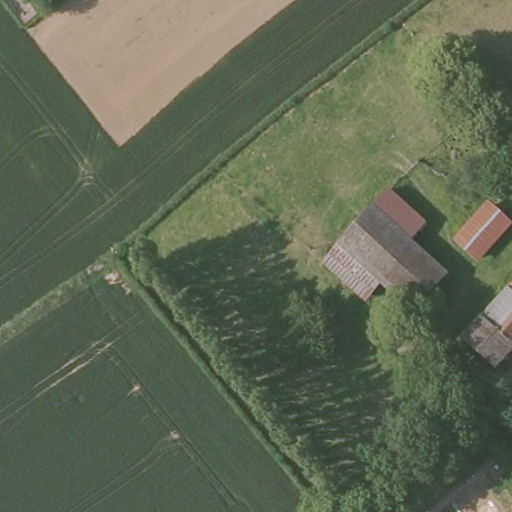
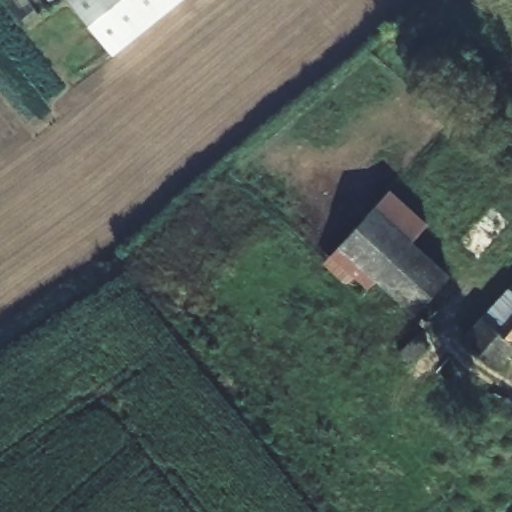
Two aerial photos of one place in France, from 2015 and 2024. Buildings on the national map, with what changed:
new [(68,0),(182,0),(113,56),(68,0)]
unchanged [(347,251),(399,198),(434,231),(420,249),(454,282),(421,319),(347,251)]
unchanged [(512,228),(512,232),(480,269),(460,251),(496,215),(505,223),(512,228)]
unchanged [(512,295),(512,348),(486,324),(512,295)]
unchanged [(512,348),(512,366),(500,377),(465,346),(486,324),(512,348)]

